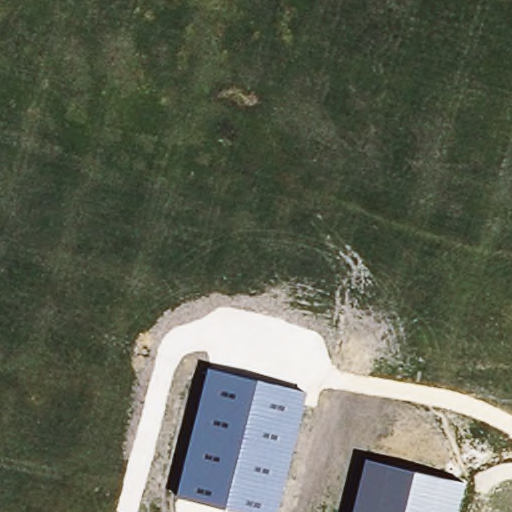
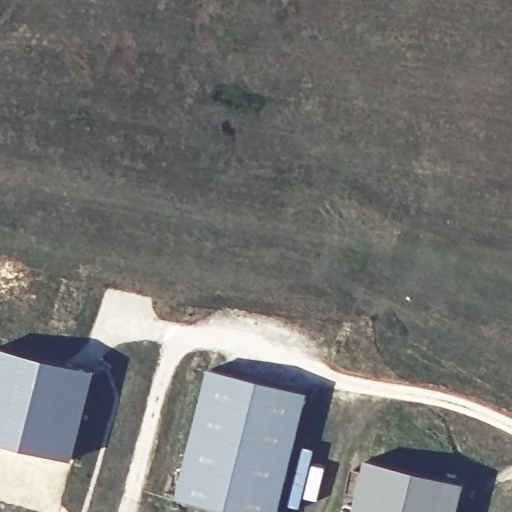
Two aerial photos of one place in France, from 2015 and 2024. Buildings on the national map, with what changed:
new [(66,461),(0,443),(0,349),(90,373),(66,461)]
unchanged [(308,392),(278,512),(237,512),(176,496),(209,368),(308,392)]
unchanged [(466,485),(460,512),(352,512),(366,460),(466,485)]

